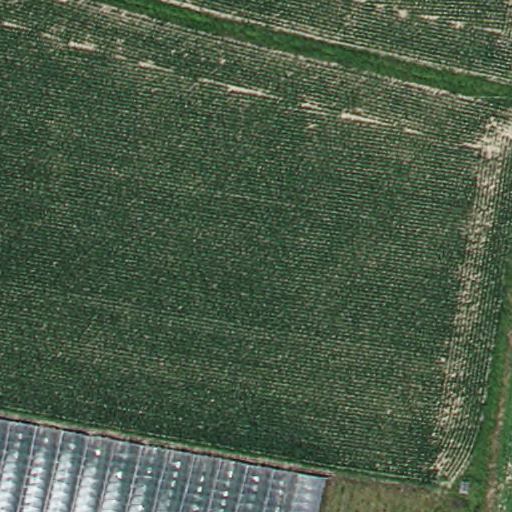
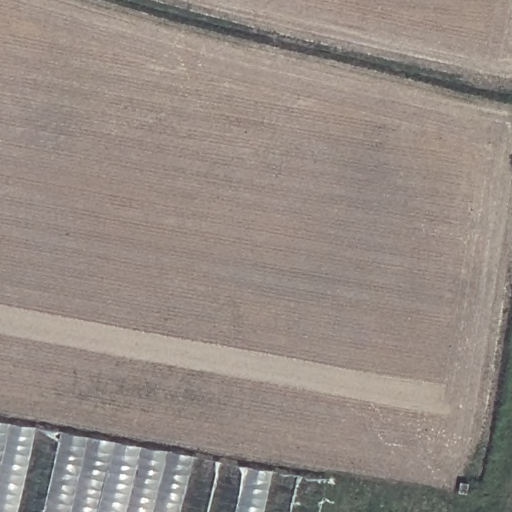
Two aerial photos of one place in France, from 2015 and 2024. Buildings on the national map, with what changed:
unchanged [(322,481),(316,512),(0,512),(0,423),(322,481)]

